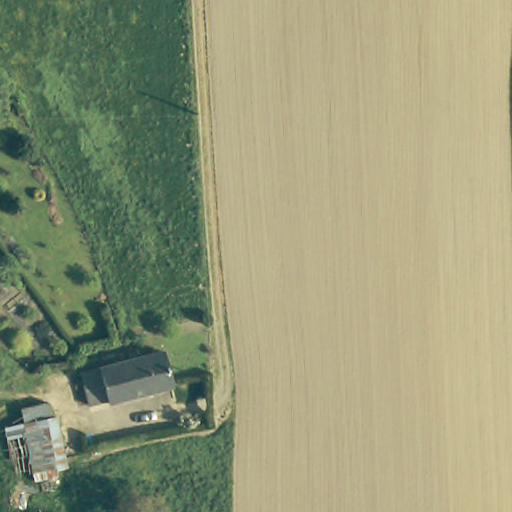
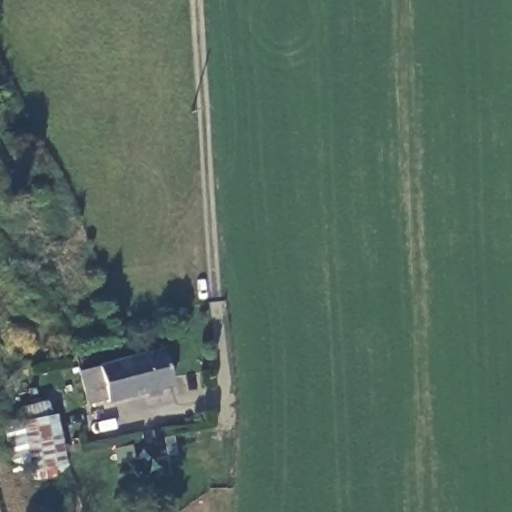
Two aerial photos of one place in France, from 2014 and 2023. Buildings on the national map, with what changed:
unchanged [(163,352),(171,387),(116,400),(87,403),(81,371),(163,352)]
unchanged [(45,481),(31,483),(24,418),(35,417),(48,415),(50,429),(60,428),(62,446),(66,478),(45,481)]
unchanged [(20,435),(28,477),(11,480),(4,438),(20,435)]

